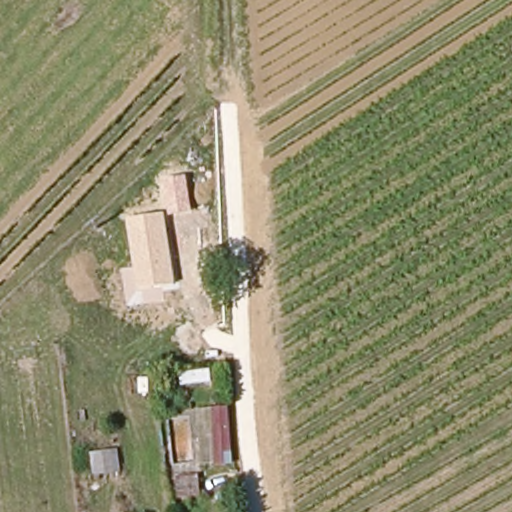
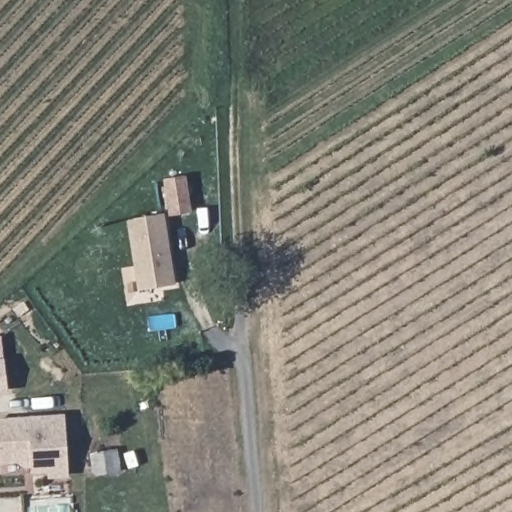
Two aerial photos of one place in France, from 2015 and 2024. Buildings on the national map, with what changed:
unchanged [(167,216),(162,180),(186,175),(191,212),(167,216)]
unchanged [(175,284),(138,289),(126,218),(165,212),(175,284)]
new [(0,362),(3,361),(6,390),(0,391),(0,362)]
unchanged [(223,406),(227,460),(212,461),(209,407),(223,406)]
new [(67,479),(48,480),(47,473),(0,476),(0,419),(63,415),(67,479)]
unchanged [(118,449),(120,468),(94,471),(92,451),(118,449)]

